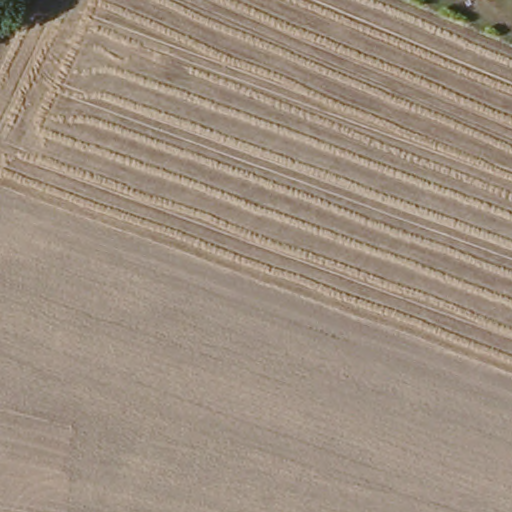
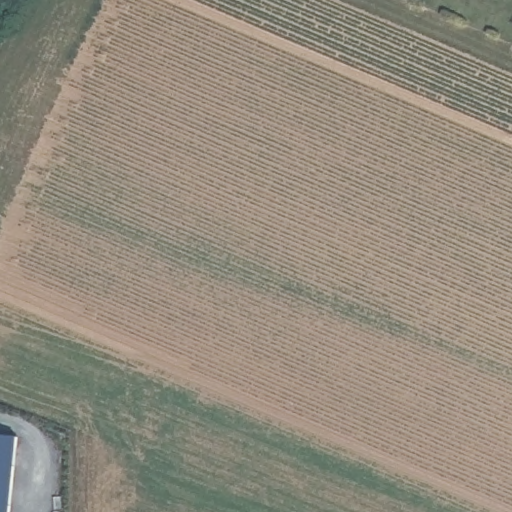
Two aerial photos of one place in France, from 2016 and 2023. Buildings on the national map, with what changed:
new [(0,512),(0,433),(17,435),(11,512),(0,512)]

